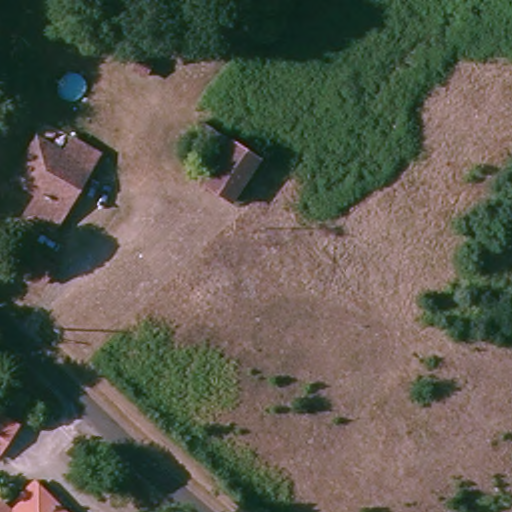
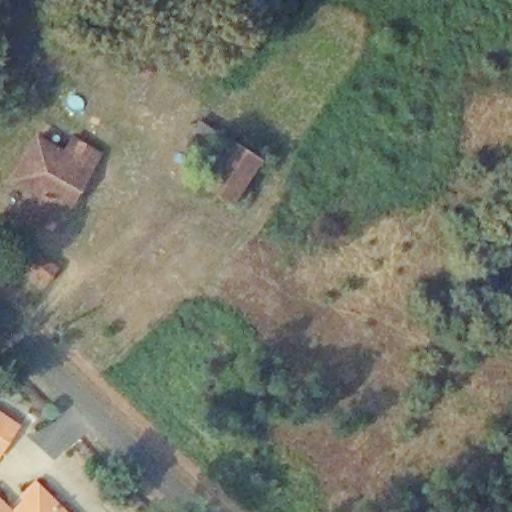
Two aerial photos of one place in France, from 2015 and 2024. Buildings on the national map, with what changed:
unchanged [(262,155),(235,202),(208,184),(224,157),(190,136),(200,116),(262,155)]
unchanged [(60,231),(28,212),(38,194),(15,180),(39,133),(66,150),(76,133),(103,151),(95,165),(70,210),(60,231)]
unchanged [(18,270),(31,255),(50,271),(38,287),(18,270)]
unchanged [(7,438),(0,451),(0,414),(16,423),(7,438)]
unchanged [(26,505),(18,495),(30,482),(63,512),(21,512),(26,505)]
unchanged [(0,507),(5,512),(0,512),(0,507)]

